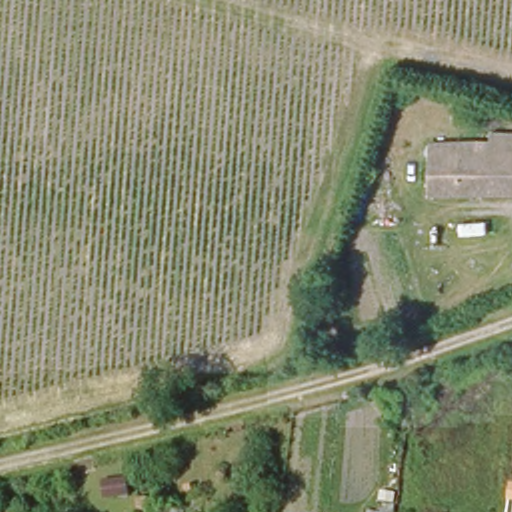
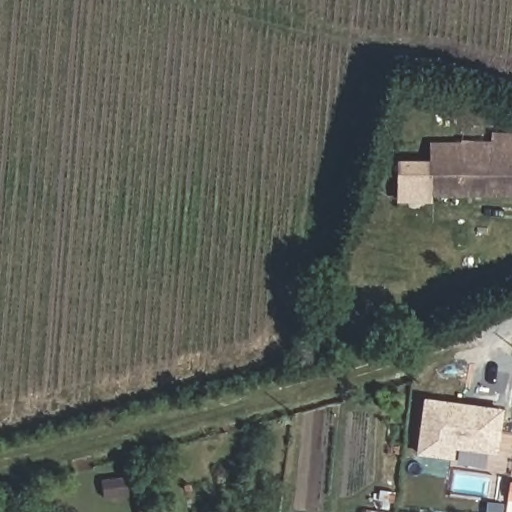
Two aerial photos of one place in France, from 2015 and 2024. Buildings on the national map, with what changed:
unchanged [(431,139),(485,143),(486,135),(512,137),(512,195),(430,193),(431,139)]
new [(430,193),(431,193),(432,203),(397,203),(396,159),(431,160),(430,193)]
new [(486,468),(455,464),(455,460),(416,454),(424,398),(504,409),(497,454),(487,454),(486,468)]
unchanged [(188,494),(162,502),(154,483),(181,474),(188,494)]
unchanged [(218,494),(224,512),(206,512),(202,499),(218,494)]
unchanged [(365,509),(376,512),(364,512),(365,509)]

